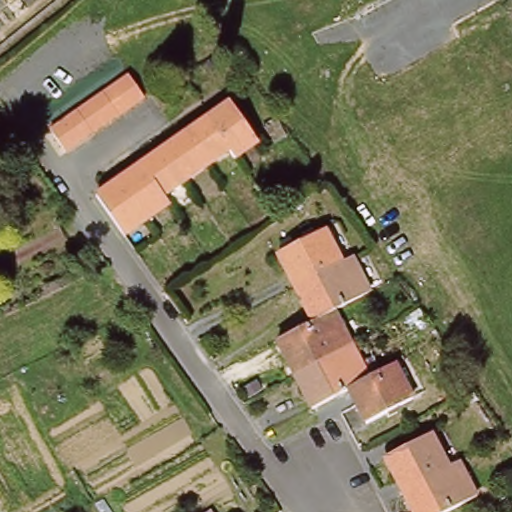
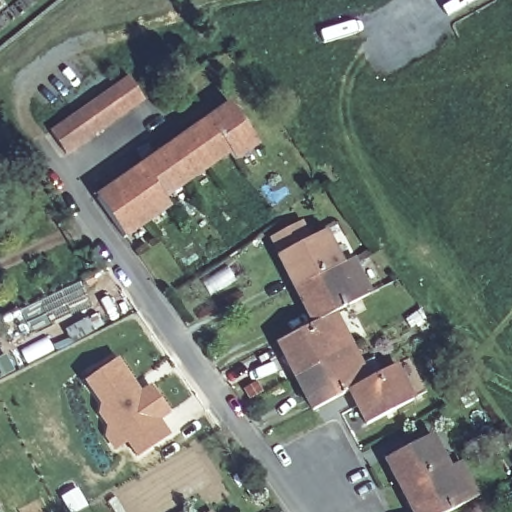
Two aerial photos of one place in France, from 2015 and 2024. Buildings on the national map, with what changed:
unchanged [(59,120),(72,110),(85,102),(98,94),(111,85),(124,76),(139,99),(126,107),(114,115),(101,124),(87,132),(74,141),(61,150),(46,128),(59,120)]
unchanged [(224,151),(202,120),(206,117),(225,104),(254,145),(230,160),(224,151)]
unchanged [(202,120),(224,151),(202,166),(181,134),(202,120)]
unchanged [(179,181),(158,150),(181,134),(202,166),(179,181)]
unchanged [(157,196),(136,165),(158,150),(179,181),(157,196)]
unchanged [(136,165),(157,196),(164,205),(141,221),(114,180),(136,165)]
unchanged [(118,236),(92,195),(114,180),(141,221),(118,236)]
unchanged [(318,231),(336,264),(291,288),(274,252),(318,231)]
unchanged [(336,264),(347,258),(363,295),(329,312),(307,323),(291,288),(336,264)]
unchanged [(329,312),(345,346),(292,375),(274,340),(307,323),(329,312)]
unchanged [(308,408),(292,375),(345,346),(360,378),(361,380),(344,390),(308,408)]
new [(140,392),(151,385),(170,412),(160,418),(171,434),(137,458),(127,445),(115,452),(104,437),(107,427),(97,415),(100,405),(85,383),(119,357),(140,392)]
unchanged [(387,365),(405,400),(361,422),(351,402),(344,390),(361,380),(360,378),(387,365)]
unchanged [(382,459),(429,436),(446,468),(447,470),(399,493),(382,459)]
unchanged [(446,512),(408,512),(399,493),(447,470),(446,468),(457,463),(474,498),(446,512)]

